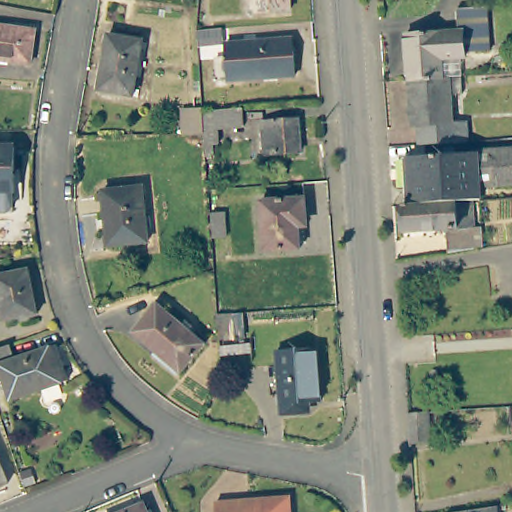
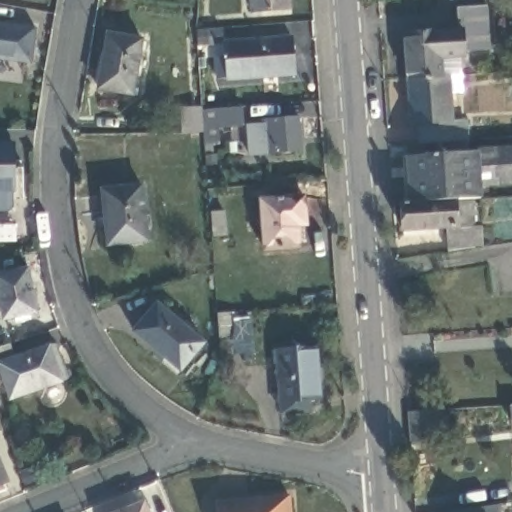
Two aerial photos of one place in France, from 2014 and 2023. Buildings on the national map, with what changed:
unchanged [(249,6),(248,0),(286,0),(286,3),(249,6)]
unchanged [(486,3),(489,49),(464,50),(464,55),(438,56),(440,75),(407,77),(403,31),(456,28),(455,6),(486,3)]
unchanged [(31,23),(27,57),(0,53),(0,19),(31,23)]
unchanged [(217,26),(218,40),(204,42),(203,27),(217,26)]
unchanged [(100,88),(109,37),(111,29),(145,35),(144,43),(133,94),(100,88)]
unchanged [(232,56),(231,42),(298,36),(302,72),(234,79),(234,76),(222,77),(221,57),(232,56)]
unchanged [(440,75),(448,75),(452,122),(418,124),(410,124),(407,77),(440,75)]
unchanged [(200,110),(238,107),(239,124),(215,126),(215,140),(202,142),(200,110)]
unchanged [(263,120),(301,117),(303,151),(266,154),(263,120)]
unchanged [(452,122),(471,120),(473,145),(420,148),(418,124),(452,122)]
unchanged [(11,133),(12,182),(10,182),(10,203),(0,203),(0,133),(11,133)]
unchanged [(484,150),(512,148),(512,184),(487,185),(485,151),(484,150)]
unchanged [(444,203),(406,205),(403,157),(485,151),(487,185),(476,186),(478,201),(444,203)]
unchanged [(109,248),(104,208),(101,187),(141,182),(144,201),(148,242),(109,248)]
unchanged [(258,199),(300,195),(303,222),(300,222),(301,241),(295,242),(295,246),(260,248),(258,199)]
unchanged [(399,207),(407,206),(444,204),(468,203),(471,252),(443,256),(441,232),(401,233),(399,208),(399,207)]
unchanged [(232,214),(234,239),(219,240),(218,215),(232,214)]
unchanged [(28,265),(38,313),(8,319),(0,283),(0,270),(28,265)]
unchanged [(161,300),(208,342),(183,369),(138,329),(161,300)]
unchanged [(225,315),(239,314),(241,338),(227,340),(225,315)]
unchanged [(8,341),(14,355),(54,341),(66,378),(10,396),(3,378),(0,379),(0,344),(8,341)]
unchanged [(318,351),(321,403),(305,404),(305,414),(283,415),(279,353),(318,351)]
unchanged [(435,442),(416,444),(414,413),(434,413),(435,442)]
unchanged [(5,485),(0,487),(0,471),(5,485)]
unchanged [(215,499),(289,496),(289,512),(215,512),(215,499)]
unchanged [(136,499),(141,512),(103,512),(136,499)]
unchanged [(500,501),(501,512),(448,512),(448,508),(500,501)]

